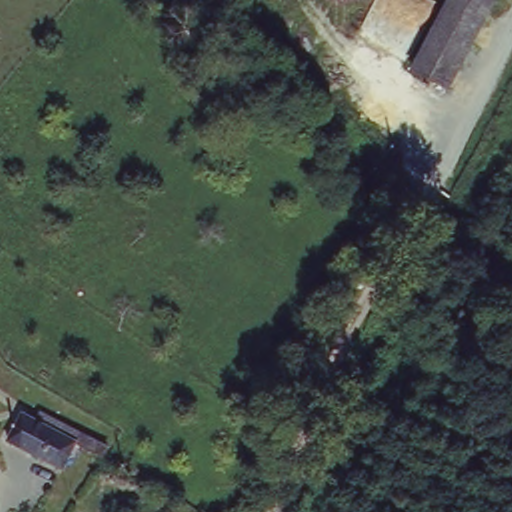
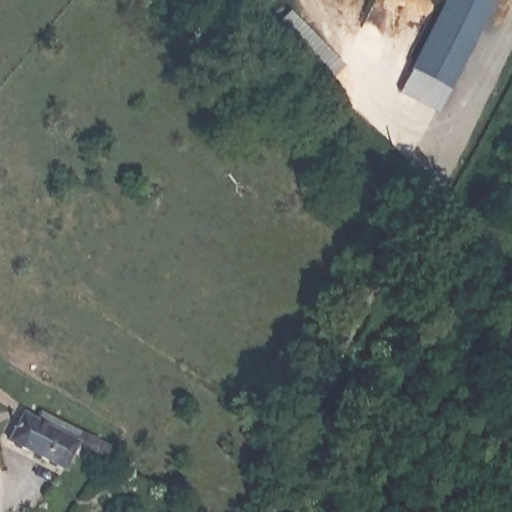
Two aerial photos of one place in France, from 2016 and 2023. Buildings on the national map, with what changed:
unchanged [(494,0),(438,116),(398,95),(448,0),(494,0)]
unchanged [(20,416),(76,446),(63,469),(8,439),(20,416)]

